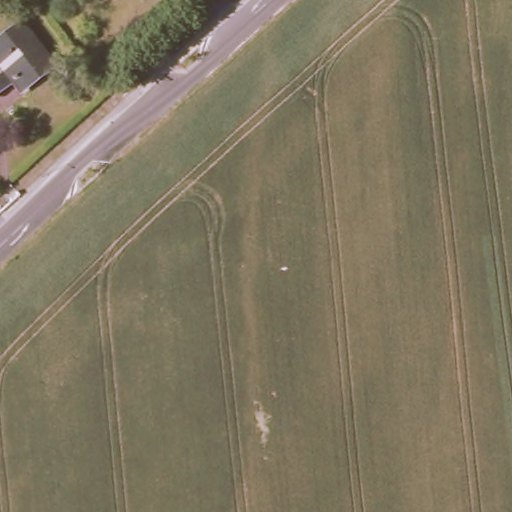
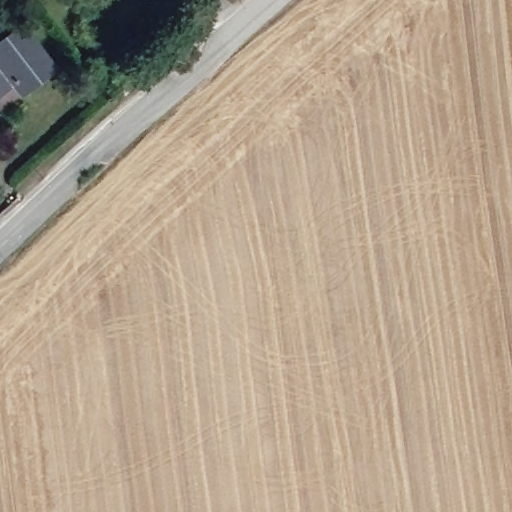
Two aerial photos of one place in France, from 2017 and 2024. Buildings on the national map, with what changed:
unchanged [(52,61),(31,79),(24,69),(3,87),(0,88),(0,39),(23,21),(52,61)]

